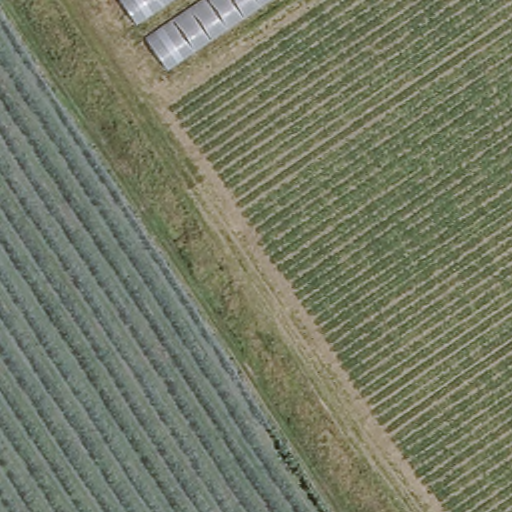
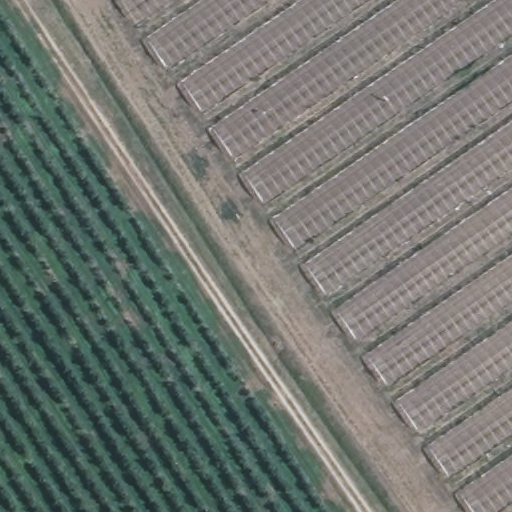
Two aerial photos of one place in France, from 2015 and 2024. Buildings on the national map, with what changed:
unchanged [(268,0),(168,69),(121,0),(268,0)]
new [(268,0),(512,0),(512,512),(468,512),(168,69),(268,0)]

